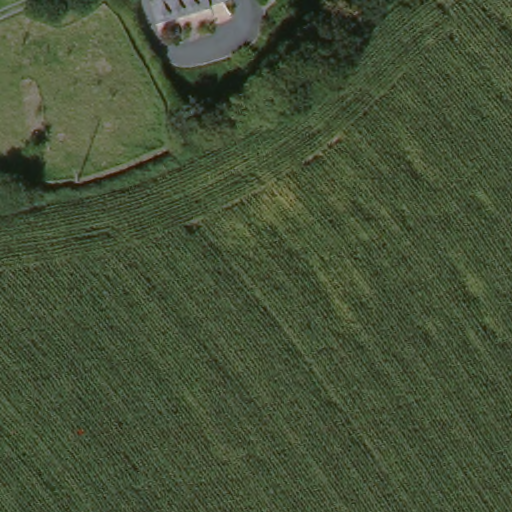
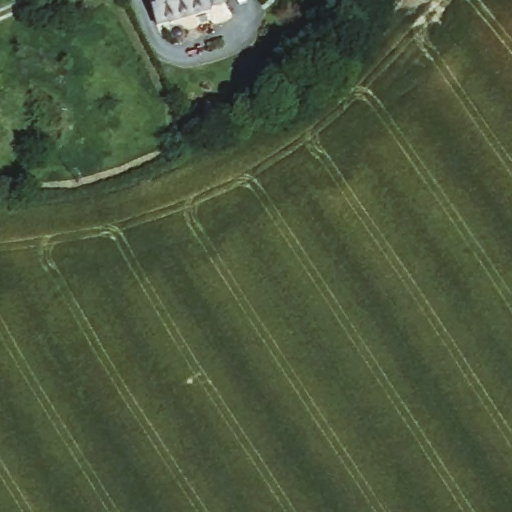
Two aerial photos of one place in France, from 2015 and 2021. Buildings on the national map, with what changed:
unchanged [(223,5),(154,25),(146,0),(221,0),(223,5)]

